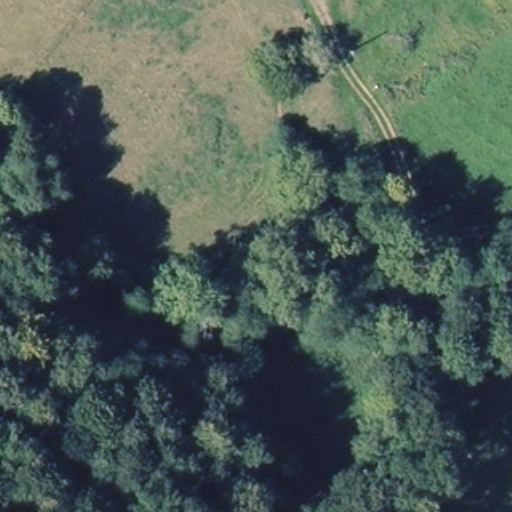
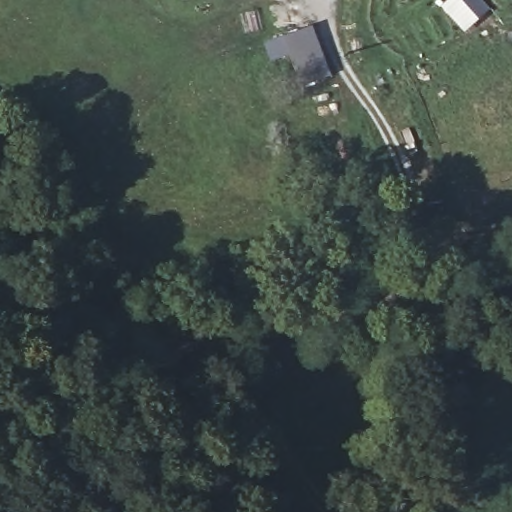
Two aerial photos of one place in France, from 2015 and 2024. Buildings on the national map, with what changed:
new [(307,70),(296,74),(288,54),(275,59),(268,41),(298,30),(300,34),(313,29),(331,75),(312,82),(307,70)]

